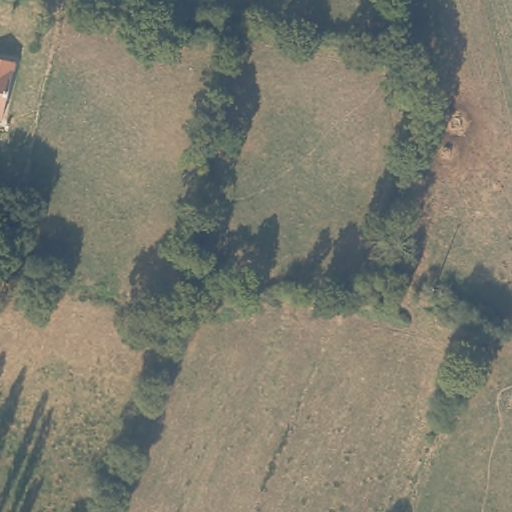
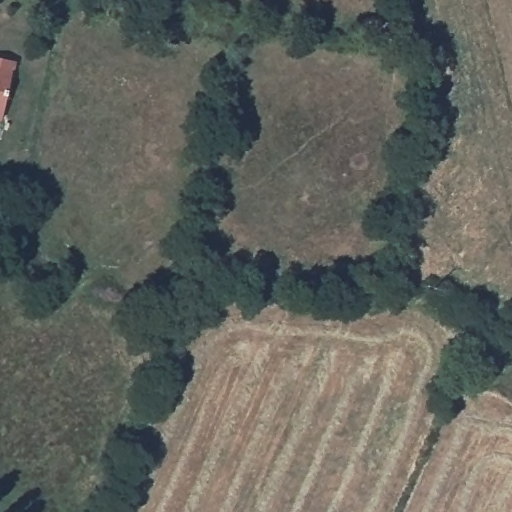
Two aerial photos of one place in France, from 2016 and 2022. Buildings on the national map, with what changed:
unchanged [(14,60),(0,116),(0,56),(14,60)]

